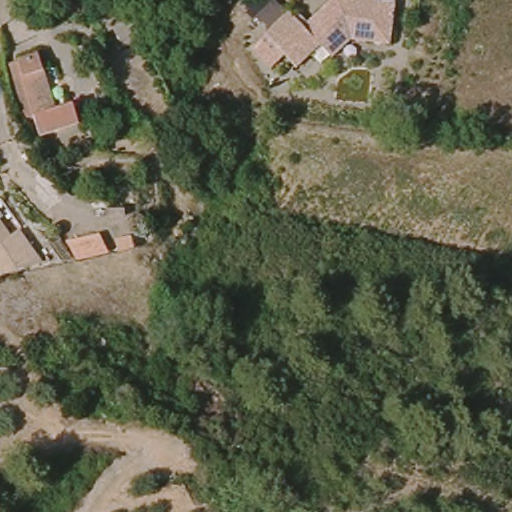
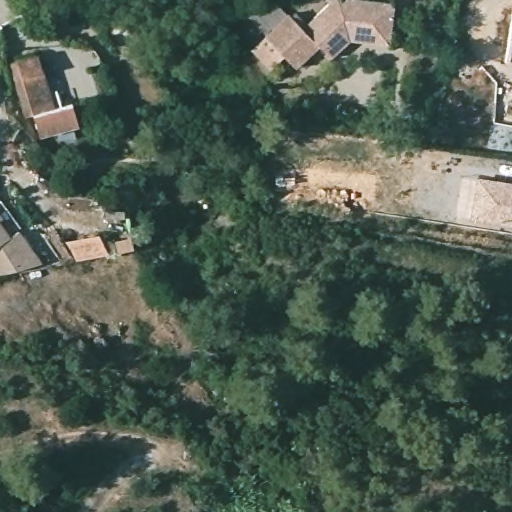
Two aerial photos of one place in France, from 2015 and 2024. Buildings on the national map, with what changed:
unchanged [(302,28),(324,9),(324,0),(336,0),(392,5),(387,47),(350,42),(330,60),(316,49),(295,68),(263,35),(285,15),(302,28)]
new [(508,40),(512,14),(512,61),(505,60),(508,40)]
unchanged [(73,106),(79,121),(37,134),(32,118),(25,120),(13,81),(8,61),(38,54),(43,73),(55,111),(66,107),(73,106)]
new [(512,182),(512,228),(472,223),(476,177),(512,182)]
unchanged [(0,235),(0,224),(5,232),(0,235)]
unchanged [(0,235),(5,232),(10,228),(15,231),(35,259),(30,263),(0,272),(0,271),(0,235)]
unchanged [(76,259),(75,246),(106,237),(110,250),(76,259)]

